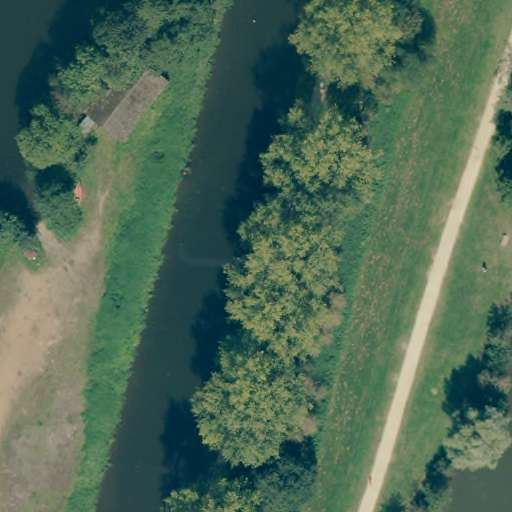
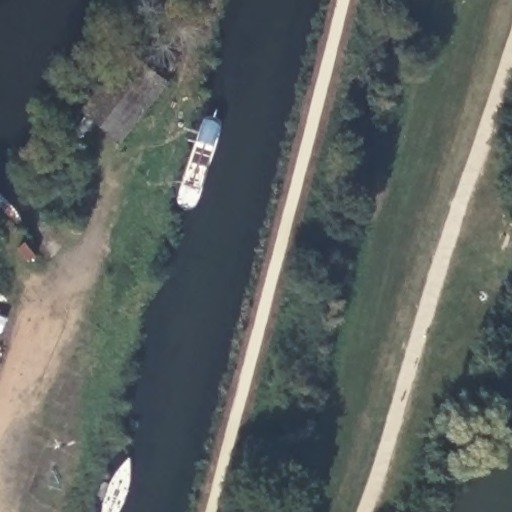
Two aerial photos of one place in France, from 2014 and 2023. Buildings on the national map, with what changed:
unchanged [(82,109),(131,49),(169,80),(122,141),(82,109)]

